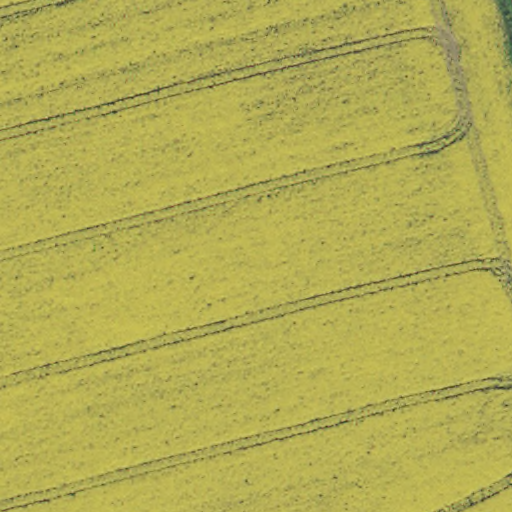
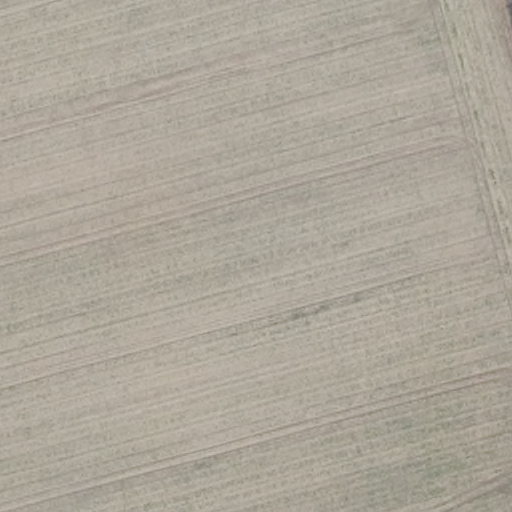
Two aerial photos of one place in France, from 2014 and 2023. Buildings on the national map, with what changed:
[]

